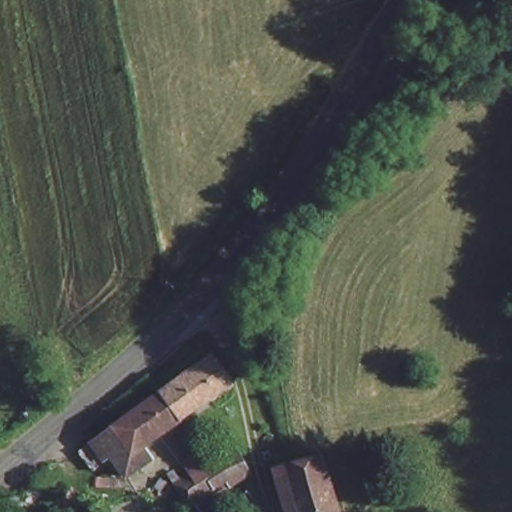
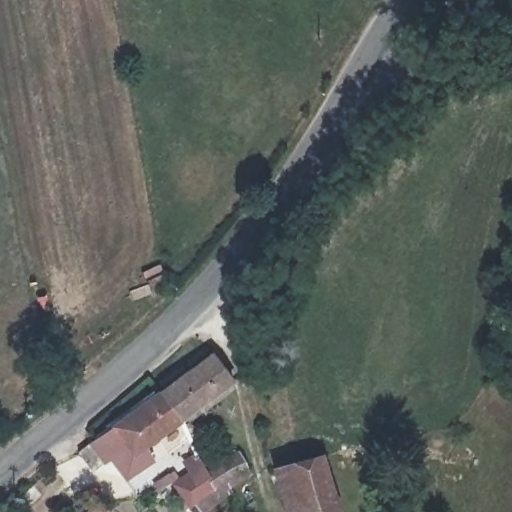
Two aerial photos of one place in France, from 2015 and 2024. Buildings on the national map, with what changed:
unchanged [(210,356),(231,382),(177,421),(157,391),(210,356)]
unchanged [(126,478),(116,465),(112,459),(92,472),(78,451),(113,420),(157,391),(177,421),(136,451),(143,461),(126,478)]
unchanged [(206,472),(212,485),(201,494),(191,503),(185,508),(172,484),(187,472),(182,463),(196,454),(206,472)]
unchanged [(212,485),(206,472),(236,454),(248,473),(230,486),(225,481),(218,485),(225,494),(203,512),(200,512),(191,503),(201,494),(212,485)]
unchanged [(337,512),(286,512),(274,473),(282,470),(320,455),(337,512)]

